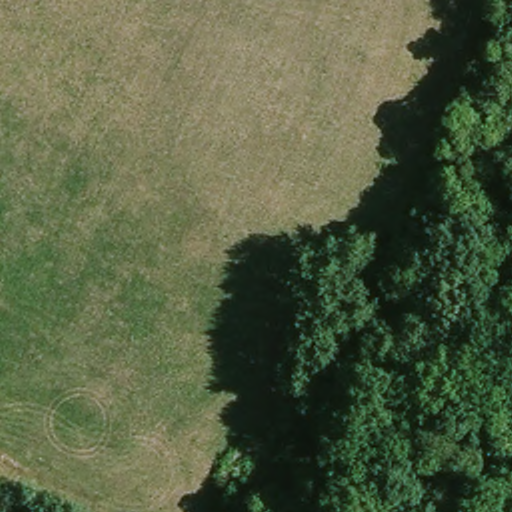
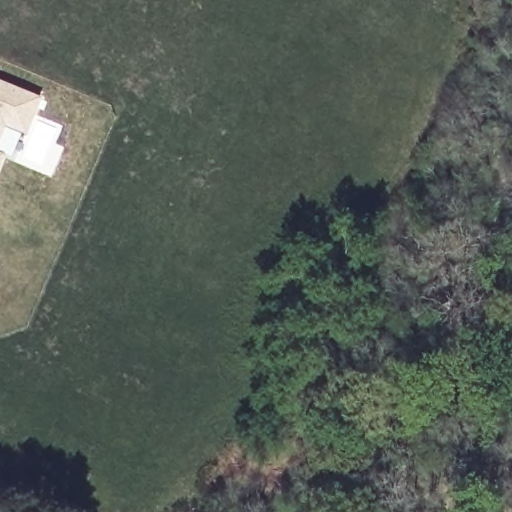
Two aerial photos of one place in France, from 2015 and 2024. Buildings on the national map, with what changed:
new [(43,96),(25,135),(9,128),(0,147),(8,151),(0,170),(0,79),(43,96)]

